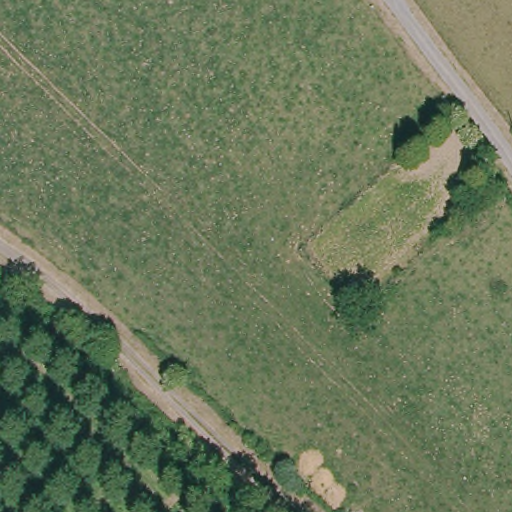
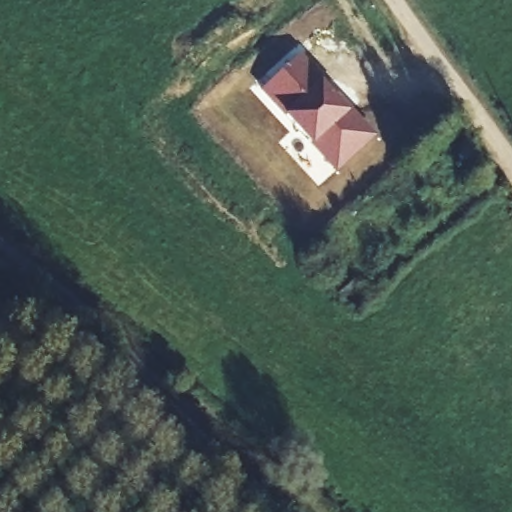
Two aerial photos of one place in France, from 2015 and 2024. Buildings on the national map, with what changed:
new [(311,146),(283,115),(260,91),(298,56),(320,80),(351,112),(375,136),(336,172),(311,146)]
unchanged [(372,299),(351,317),(331,294),(352,276),(372,299)]

